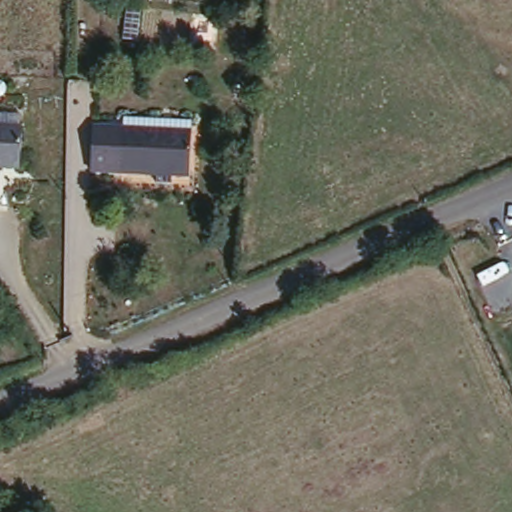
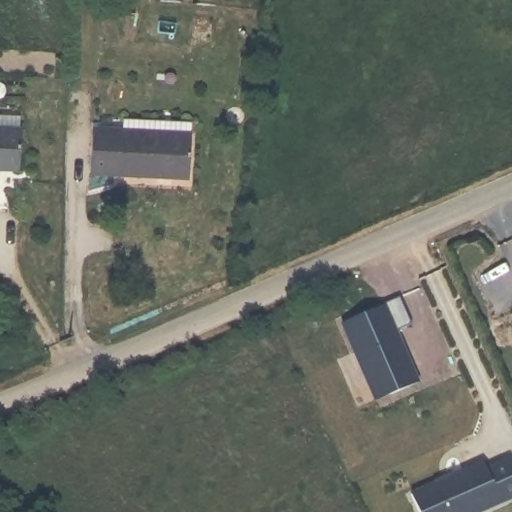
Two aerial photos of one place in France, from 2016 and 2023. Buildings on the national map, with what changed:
unchanged [(20,121),(18,160),(0,160),(0,107),(21,109),(20,121)]
unchanged [(190,125),(186,173),(111,167),(115,120),(190,125)]
new [(410,323),(397,329),(421,381),(375,402),(340,323),(400,297),(410,323)]
new [(410,492),(484,461),(487,467),(510,457),(512,462),(512,499),(482,512),(418,512),(410,492)]

